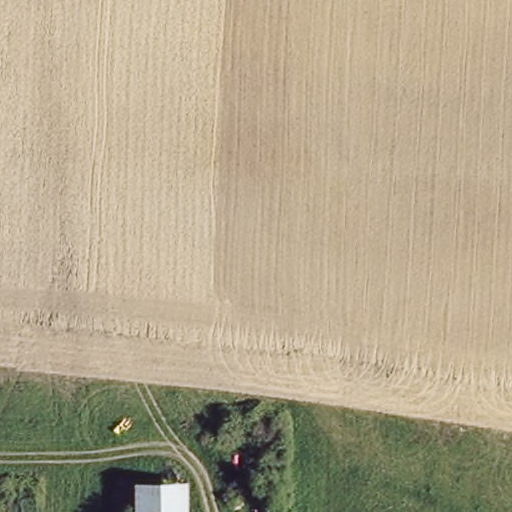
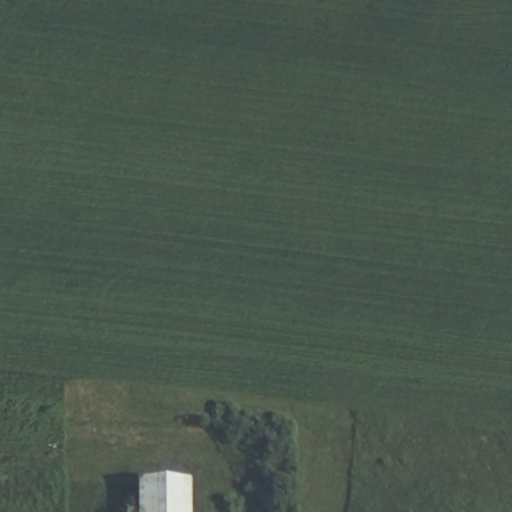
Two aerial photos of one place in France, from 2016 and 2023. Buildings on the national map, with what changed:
unchanged [(135,489),(185,488),(185,512),(136,512),(135,489)]

